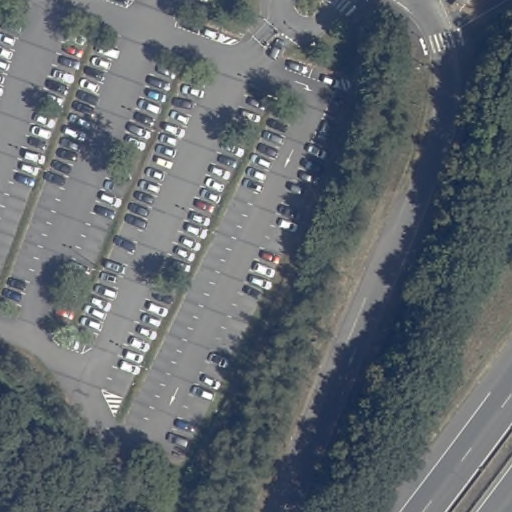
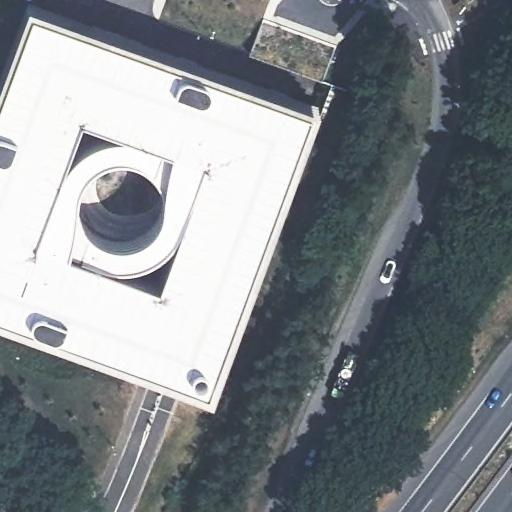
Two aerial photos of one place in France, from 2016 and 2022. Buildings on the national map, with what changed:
new [(318,109),(211,397),(0,321),(0,78),(29,1),(318,109)]
new [(322,83),(249,56),(263,19),(335,47),(322,83)]

